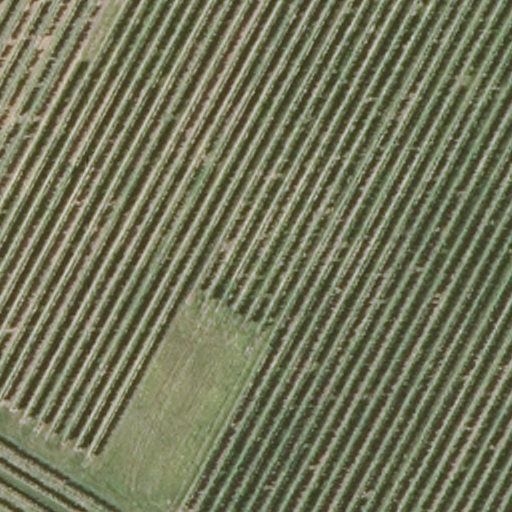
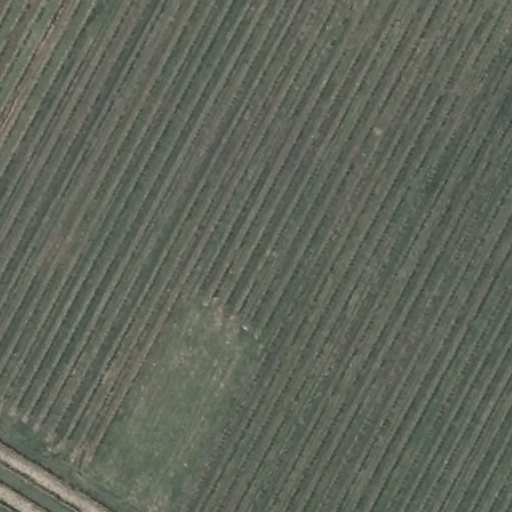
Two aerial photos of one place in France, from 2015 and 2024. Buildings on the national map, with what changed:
[]

